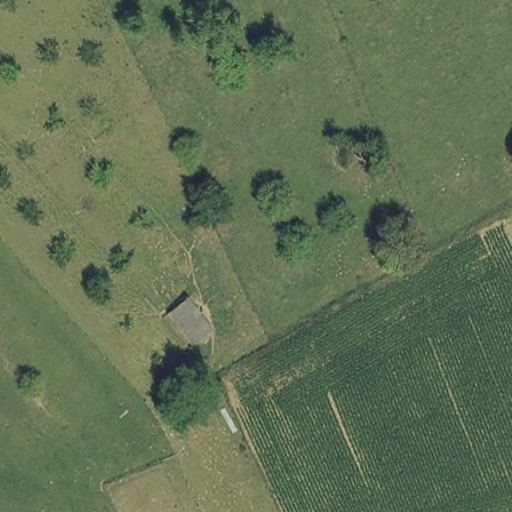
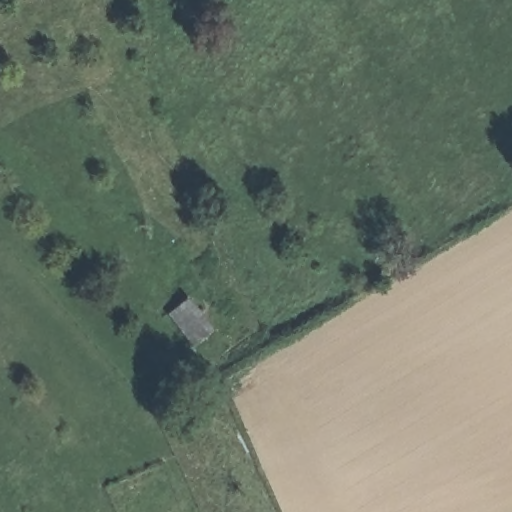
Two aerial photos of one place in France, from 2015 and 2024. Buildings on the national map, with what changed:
unchanged [(212,326),(191,341),(166,311),(185,296),(212,326)]

